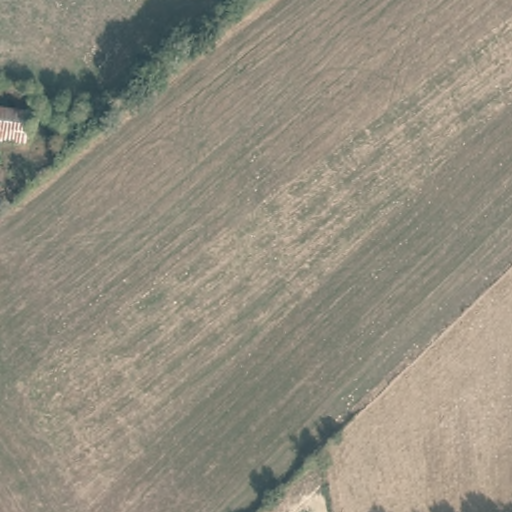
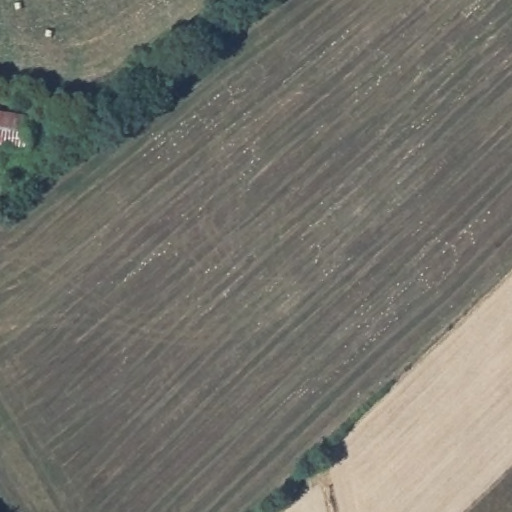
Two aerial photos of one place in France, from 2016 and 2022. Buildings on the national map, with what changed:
unchanged [(0,142),(0,110),(3,111),(31,114),(28,146),(0,142)]

